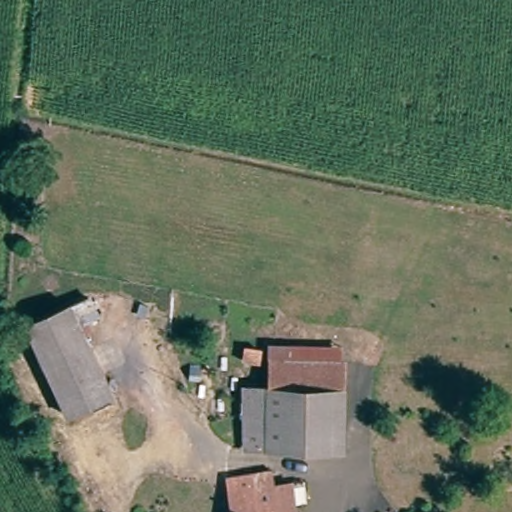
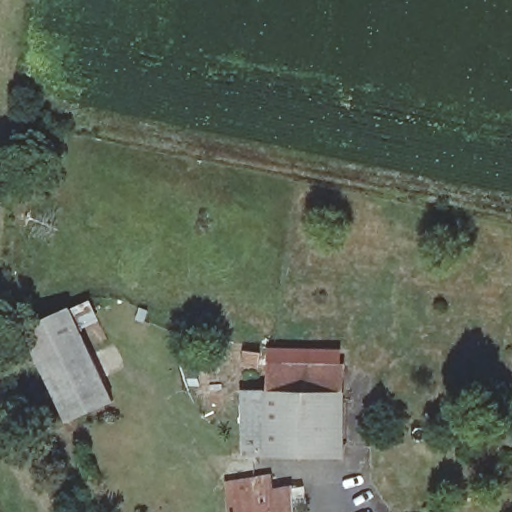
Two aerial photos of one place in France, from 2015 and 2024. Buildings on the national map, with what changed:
unchanged [(103,322),(86,332),(116,400),(66,424),(23,329),(71,308),(94,298),(103,322)]
unchanged [(270,393),(268,365),(342,363),(343,391),(270,393)]
unchanged [(345,451),(246,455),(245,395),(270,393),(343,391),(345,451)]
unchanged [(231,506),(229,487),(255,482),(259,499),(288,493),(291,512),(232,512),(231,506)]

